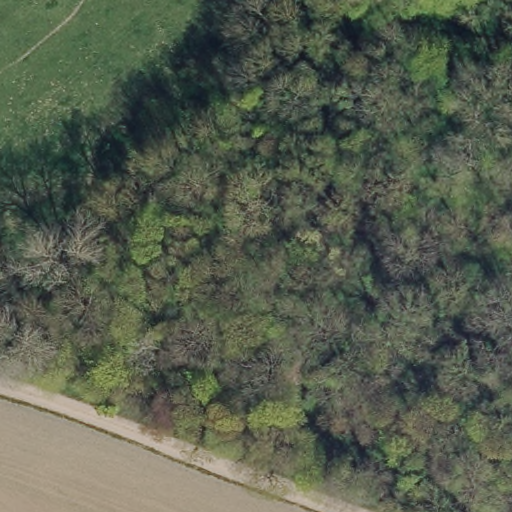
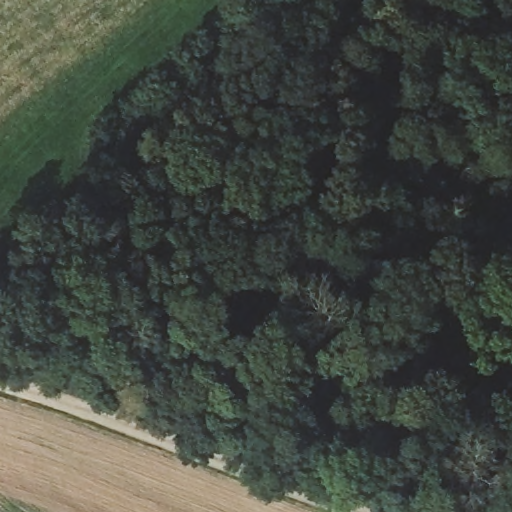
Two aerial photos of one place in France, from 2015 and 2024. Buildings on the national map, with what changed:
[]

